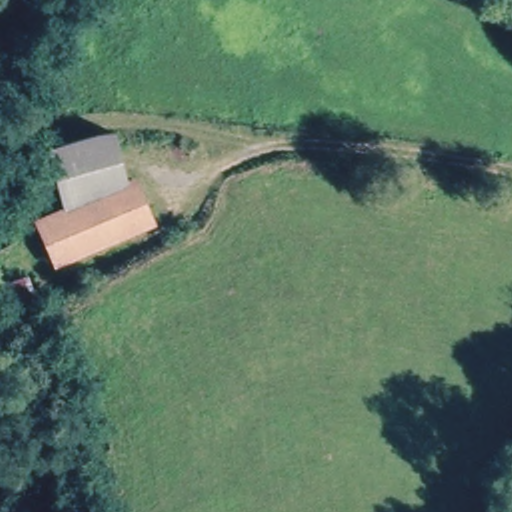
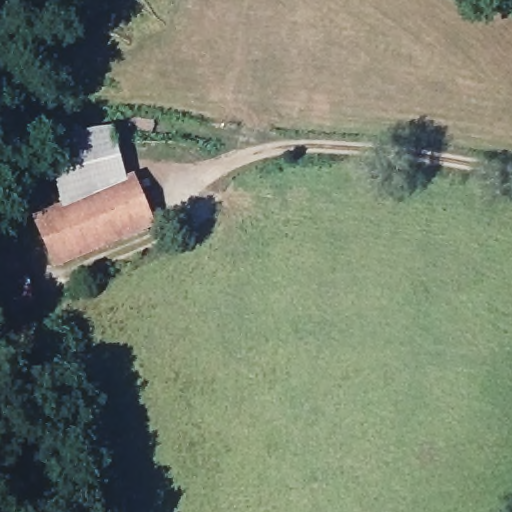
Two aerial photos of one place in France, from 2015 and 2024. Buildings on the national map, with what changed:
unchanged [(133,181),(76,209),(54,164),(75,153),(116,131),(126,161),(133,181)]
unchanged [(76,209),(133,181),(140,178),(161,220),(71,265),(50,222),(76,209)]
unchanged [(46,311),(16,326),(0,287),(0,247),(14,241),(46,311)]

